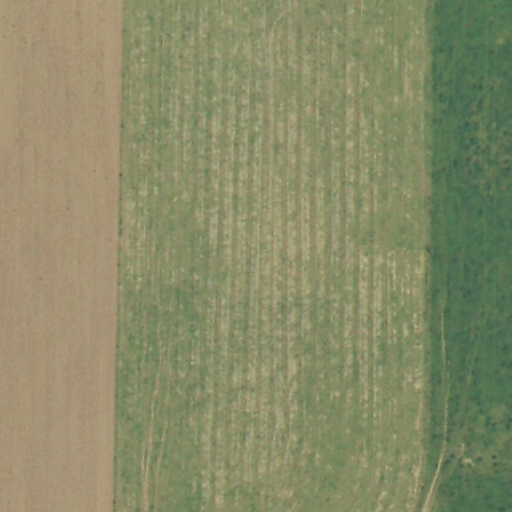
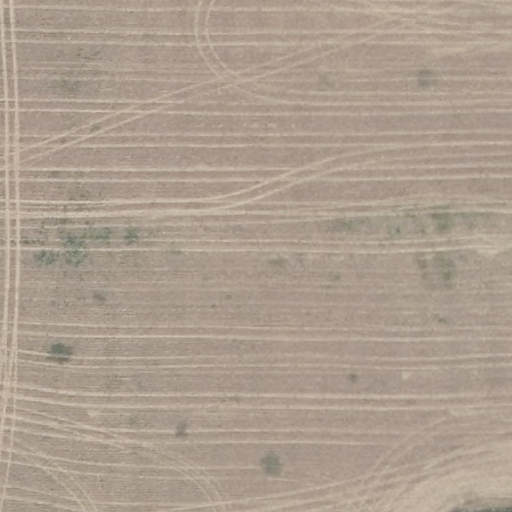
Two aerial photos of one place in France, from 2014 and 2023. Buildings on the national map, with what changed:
[]

